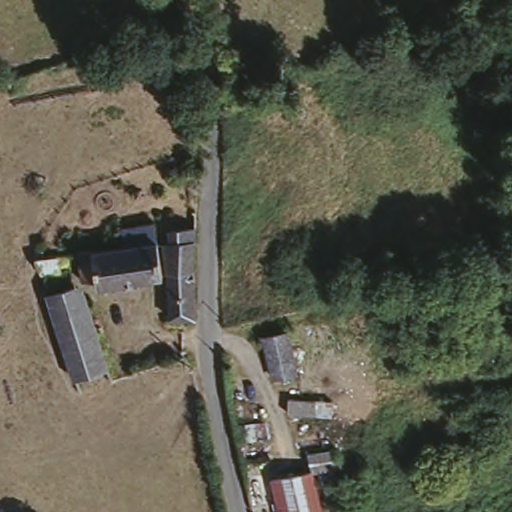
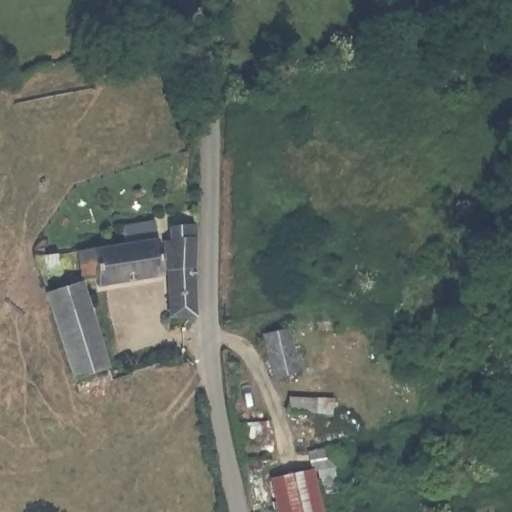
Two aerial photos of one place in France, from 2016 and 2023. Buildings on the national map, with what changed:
unchanged [(167,235),(173,235),(172,219),(171,203),(200,199),(200,216),(199,312),(169,315),(167,235)]
unchanged [(124,235),(123,216),(157,210),(162,271),(95,280),(94,270),(80,271),(77,242),(124,235)]
unchanged [(66,273),(55,275),(38,278),(33,251),(43,249),(45,258),(53,256),(65,255),(66,273)]
unchanged [(77,387),(72,371),(46,286),(73,280),(83,277),(89,296),(107,362),(112,378),(77,387)]
unchanged [(289,323),(298,365),(274,371),(264,330),(289,323)]
unchanged [(331,405),(330,421),(287,418),(288,402),(331,405)]
unchanged [(341,440),(347,460),(318,468),(328,512),(277,512),(270,470),(307,466),(306,442),(341,440)]

